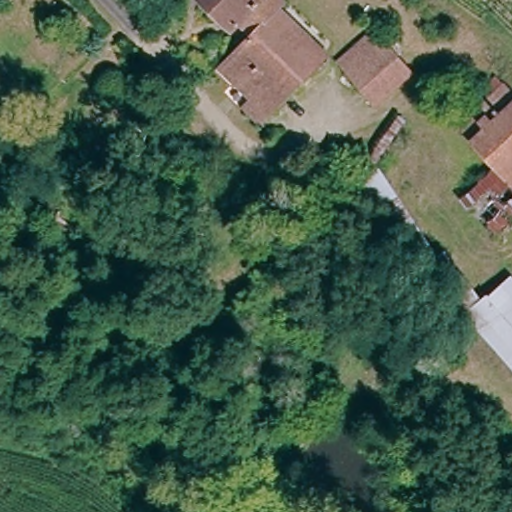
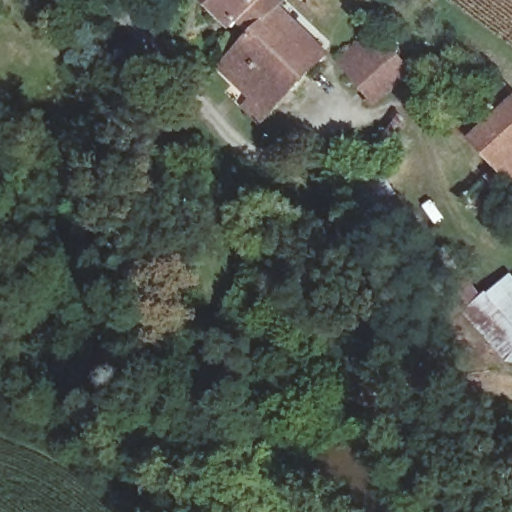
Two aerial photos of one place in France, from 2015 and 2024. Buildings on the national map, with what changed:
unchanged [(279,6),(325,52),(259,120),(245,106),(251,99),(220,67),(251,36),(251,35),(238,22),(232,27),(203,0),(282,0),(284,1),(279,6)]
unchanged [(372,30),(410,72),(375,102),(338,60),(372,30)]
unchanged [(494,77),(512,96),(512,182),(495,164),(452,117),(494,77)]
unchanged [(512,215),(492,235),(457,199),(495,164),(512,182),(512,215)]
unchanged [(442,320),(401,259),(353,185),(380,167),(389,182),(437,254),(444,250),(462,276),(463,275),(480,300),(446,324),(442,320)]
unchanged [(466,316),(511,275),(512,277),(512,368),(486,338),(466,316)]

